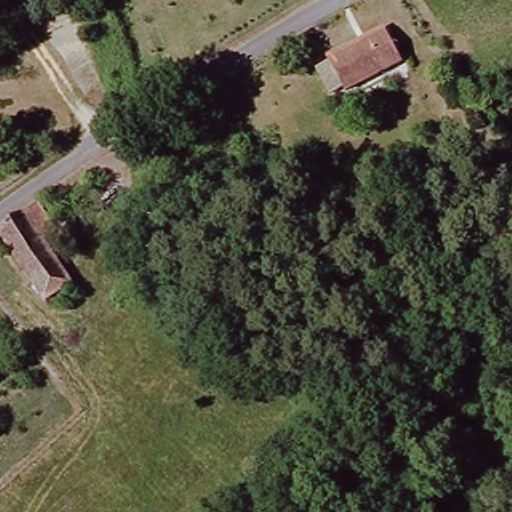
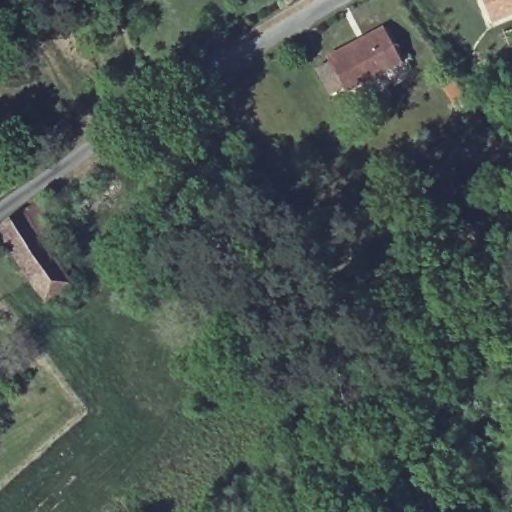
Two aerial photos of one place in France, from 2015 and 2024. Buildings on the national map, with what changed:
new [(485,0),(512,0),(512,13),(494,21),(485,0)]
unchanged [(402,62),(347,98),(329,69),(384,33),(402,62)]
unchanged [(75,294),(46,313),(0,243),(0,239),(39,212),(59,240),(46,249),(75,294)]

